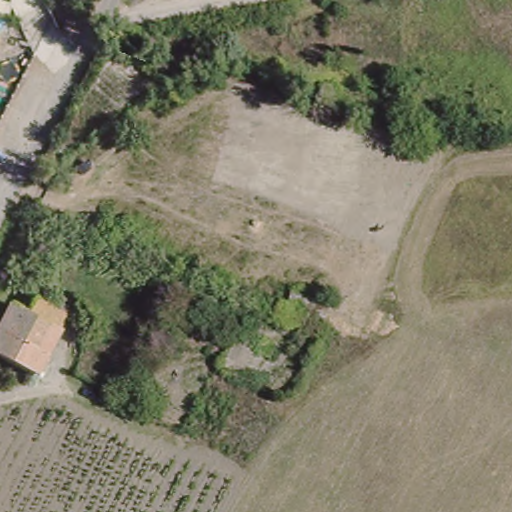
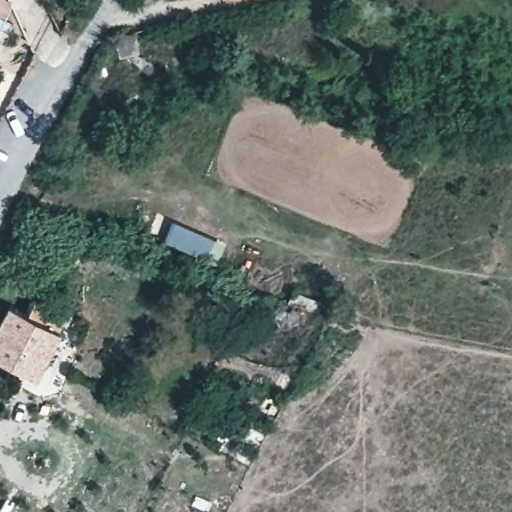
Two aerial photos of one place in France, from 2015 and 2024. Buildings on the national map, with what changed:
new [(225,243),(215,264),(162,241),(171,220),(225,243)]
unchanged [(0,356),(0,316),(6,303),(27,314),(36,296),(65,315),(57,329),(43,355),(31,374),(5,359),(0,356)]
unchanged [(281,345),(263,342),(268,318),(285,323),(281,345)]

